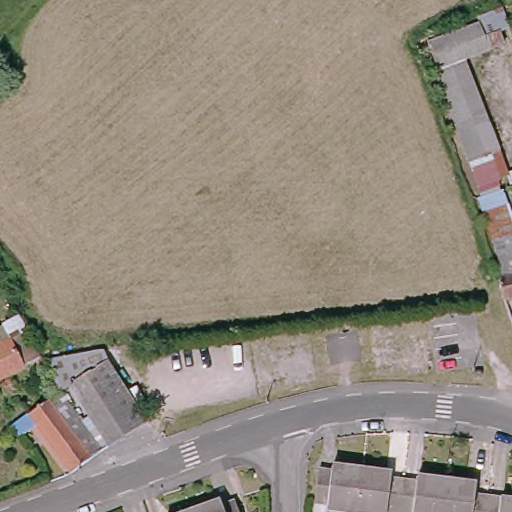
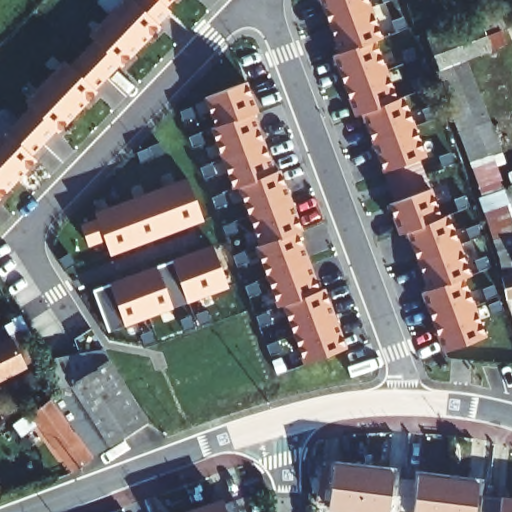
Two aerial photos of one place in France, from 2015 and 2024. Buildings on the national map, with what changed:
new [(166,8),(172,14),(122,66),(119,63),(95,88),(99,90),(57,132),(55,130),(31,156),(35,160),(0,199),(0,132),(4,128),(7,130),(30,106),(25,101),(64,59),(70,64),(93,40),(87,35),(120,0),(174,0),(166,8)]
new [(382,37),(373,40),(399,96),(403,94),(427,156),(419,158),(442,217),(448,215),(470,276),(464,278),(485,335),(442,351),(419,292),(427,288),(405,234),(399,235),(387,203),(394,200),(360,114),(354,116),(330,56),(339,53),(319,0),(368,0),(382,37)]
unchanged [(500,272),(474,184),(424,35),(477,21),(482,30),(497,24),(503,39),(467,55),(505,167),(512,165),(512,183),(502,186),(512,221),(512,270),(500,272)]
new [(259,113),(254,114),(276,170),(281,167),(302,230),(297,232),(317,290),(325,288),(347,348),(304,365),(282,305),(277,307),(254,247),(259,244),(237,189),(233,190),(210,128),(215,127),(202,97),(247,82),(259,113)]
new [(205,221),(110,256),(105,241),(88,247),(80,224),(97,218),(95,212),(187,179),(205,221)]
new [(229,288),(107,332),(92,290),(213,245),(229,288)]
unchanged [(500,272),(512,270),(512,301),(505,303),(500,272)]
unchanged [(0,343),(0,325),(2,324),(11,338),(5,341),(0,343)]
unchanged [(0,374),(0,343),(5,341),(11,338),(24,362),(0,374)]
unchanged [(127,427),(102,444),(82,413),(85,411),(65,381),(73,376),(60,355),(100,351),(105,357),(142,420),(127,427)]
unchanged [(35,418),(18,430),(10,420),(25,408),(16,395),(44,373),(55,387),(77,417),(82,413),(102,444),(102,446),(71,470),(35,418)]
unchanged [(329,504),(316,502),(319,472),(330,473),(330,467),(361,472),(357,512),(332,512),(328,512),(329,504)]
unchanged [(385,512),(357,512),(361,472),(389,477),(389,481),(402,483),(399,512),(389,512),(385,512)]
unchanged [(414,485),(414,480),(445,484),(442,512),(399,512),(402,483),(414,485)]
unchanged [(474,487),(473,497),(487,498),(485,512),(442,512),(445,484),(474,487)]
unchanged [(485,512),(487,498),(500,499),(500,503),(512,504),(512,512),(485,512)]
unchanged [(215,508),(228,503),(231,512),(191,512),(214,503),(215,508)]

